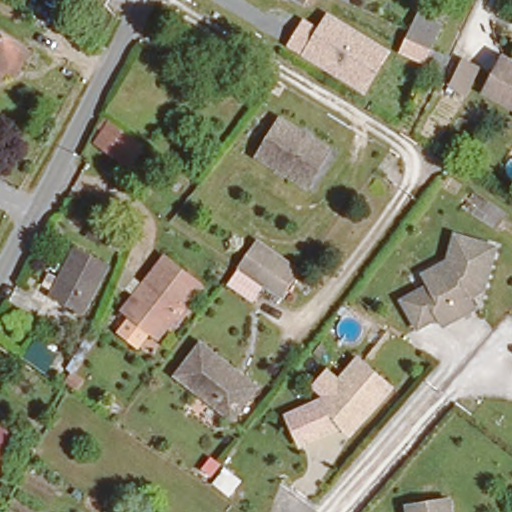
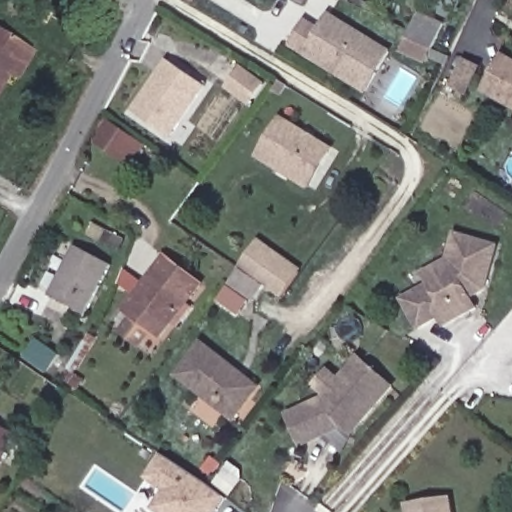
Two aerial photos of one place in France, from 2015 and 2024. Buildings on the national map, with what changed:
unchanged [(367,95),(302,57),(331,11),(394,50),(367,95)]
unchanged [(443,23),(430,50),(405,38),(419,12),(443,23)]
unchanged [(23,39),(34,45),(18,74),(8,69),(0,85),(0,26),(23,39)]
new [(170,138),(131,109),(167,58),(207,87),(170,138)]
new [(464,58),(481,66),(467,93),(451,86),(464,58)]
new [(248,107),(224,88),(241,64),(266,83),(248,107)]
unchanged [(493,66),(512,77),(512,113),(477,94),(493,66)]
unchanged [(252,148),(277,115),(296,130),(302,125),(315,136),(312,142),(329,153),(304,186),(252,148)]
unchanged [(142,145),(123,163),(91,137),(109,117),(142,145)]
unchanged [(498,244),(486,290),(472,297),(477,306),(442,325),(440,317),(417,328),(403,298),(428,286),(422,273),(447,260),(457,231),(498,244)]
unchanged [(301,268),(278,296),(262,285),(252,299),(227,281),(258,238),(301,268)]
unchanged [(54,260),(61,264),(75,239),(113,262),(82,310),(46,290),(40,287),(54,260)]
unchanged [(124,311),(166,259),(198,288),(157,338),(124,311)]
unchanged [(21,323),(14,334),(2,326),(7,315),(21,323)]
unchanged [(197,345),(232,372),(230,376),(250,389),(230,416),(175,375),(197,345)]
unchanged [(395,386),(351,435),(342,427),(300,445),(285,413),(322,396),(311,385),(329,366),(340,375),(358,354),(395,386)]
unchanged [(0,452),(0,441),(5,444),(0,452)]
new [(217,512),(152,512),(152,511),(161,491),(145,480),(162,454),(227,497),(217,512)]
unchanged [(230,468),(244,478),(231,497),(217,487),(230,468)]
unchanged [(406,512),(405,503),(451,497),(453,512),(406,512)]

